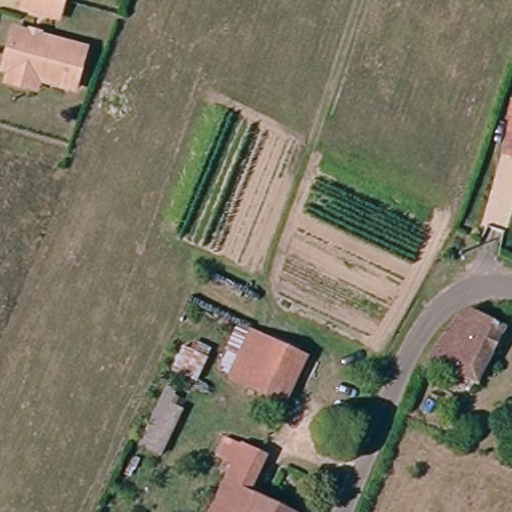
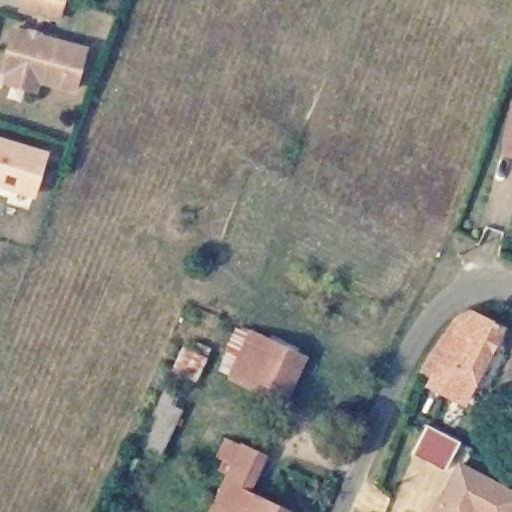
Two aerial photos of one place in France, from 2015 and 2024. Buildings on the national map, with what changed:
unchanged [(23,10),(26,0),(64,0),(59,21),(23,10)]
unchanged [(21,86),(22,75),(7,71),(15,30),(89,45),(82,86),(48,79),(47,91),(21,86)]
unchanged [(507,147),(512,114),(512,147),(507,147)]
new [(37,198),(0,188),(0,137),(49,153),(37,198)]
unchanged [(428,358),(460,308),(502,329),(475,383),(428,358)]
unchanged [(275,400),(250,388),(242,384),(224,375),(246,330),(262,338),(272,342),(297,354),(275,400)]
unchanged [(189,402),(160,459),(137,448),(162,390),(189,402)]
unchanged [(224,484),(244,447),(262,457),(244,496),(278,512),(211,512),(224,484)]
new [(458,461),(512,489),(512,512),(431,512),(458,461)]

